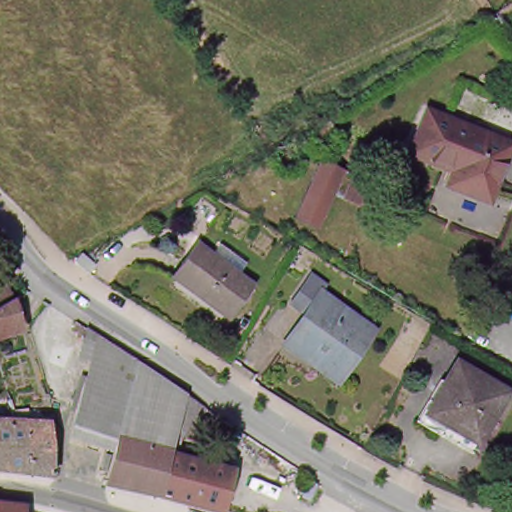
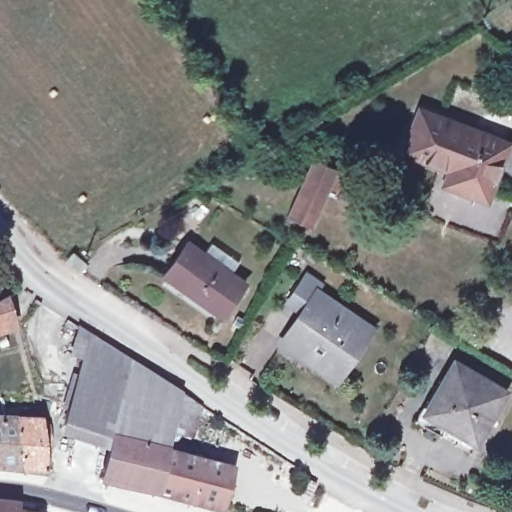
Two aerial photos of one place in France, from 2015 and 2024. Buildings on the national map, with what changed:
unchanged [(504,137),(478,190),(453,178),(461,160),(405,132),(422,99),(504,137)]
unchanged [(355,209),(321,194),(305,227),(281,216),(308,158),(366,185),(355,209)]
unchanged [(244,282),(221,314),(163,273),(185,242),(244,282)]
unchanged [(86,266),(78,278),(65,271),(72,260),(86,266)]
unchanged [(367,337),(332,388),(307,370),(311,365),(282,345),(304,313),(298,315),(286,306),(304,281),(319,292),(314,300),(367,337)]
unchanged [(9,326),(0,330),(0,308),(9,326)]
unchanged [(96,348),(121,363),(105,443),(57,435),(73,335),(96,348)]
unchanged [(147,498),(96,485),(105,443),(121,363),(143,377),(167,391),(147,498)]
unchanged [(503,392),(473,443),(420,416),(450,364),(503,392)]
unchanged [(178,461),(169,504),(147,498),(167,391),(189,405),(178,461)]
unchanged [(20,427),(16,474),(0,472),(0,426),(20,427)]
unchanged [(46,430),(46,438),(52,438),(51,445),(44,445),(41,477),(16,474),(20,427),(46,430)]
unchanged [(221,473),(214,512),(201,512),(169,504),(178,461),(221,473)]
unchanged [(4,505),(4,511),(10,512),(0,512),(0,504),(4,505)]

